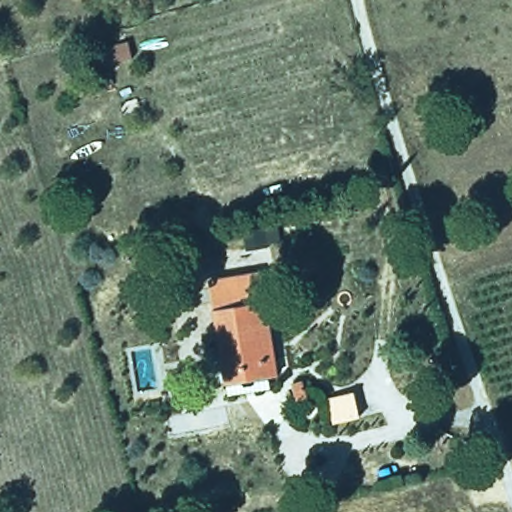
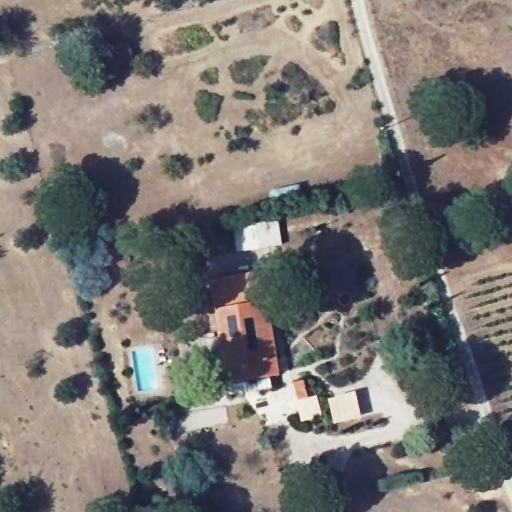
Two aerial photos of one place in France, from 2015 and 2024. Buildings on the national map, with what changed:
unchanged [(132,38),(138,59),(93,73),(87,48),(132,38)]
unchanged [(260,271),(275,359),(266,361),(271,389),(228,395),(208,280),(260,271)]

